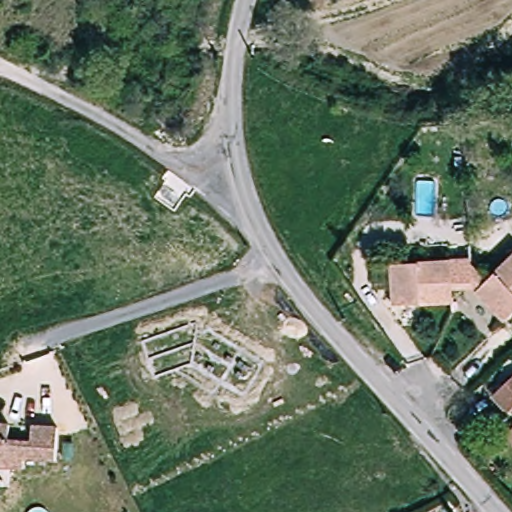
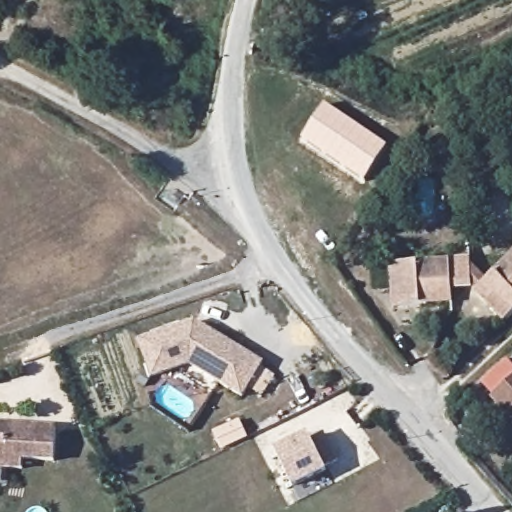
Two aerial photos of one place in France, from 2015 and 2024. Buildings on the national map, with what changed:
new [(388,148),(365,182),(303,140),(327,106),(388,148)]
unchanged [(505,321),(477,291),(512,258),(512,315),(505,321)]
unchanged [(470,259),(472,286),(452,287),(452,302),(394,306),(391,264),(470,259)]
new [(262,367),(276,376),(264,396),(250,388),(244,398),(190,366),(152,380),(138,339),(196,320),(265,362),(262,367)]
unchanged [(494,397),(482,382),(510,357),(512,360),(512,419),(494,397)]
unchanged [(21,460),(22,469),(4,469),(5,459),(0,459),(0,426),(7,426),(38,427),(55,428),(54,461),(21,460)]
new [(293,488),(275,450),(309,434),(311,439),(325,432),(337,461),(324,467),(326,472),(293,488)]

